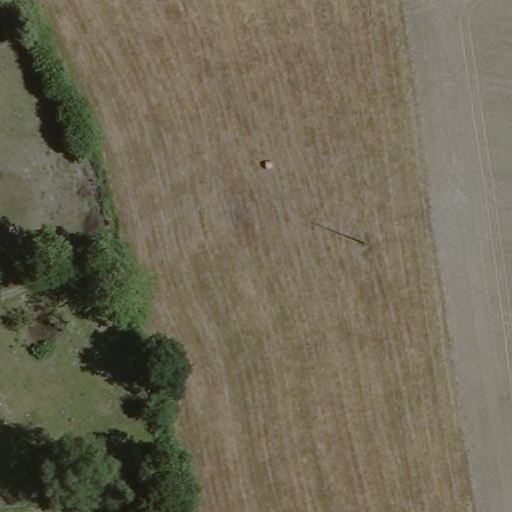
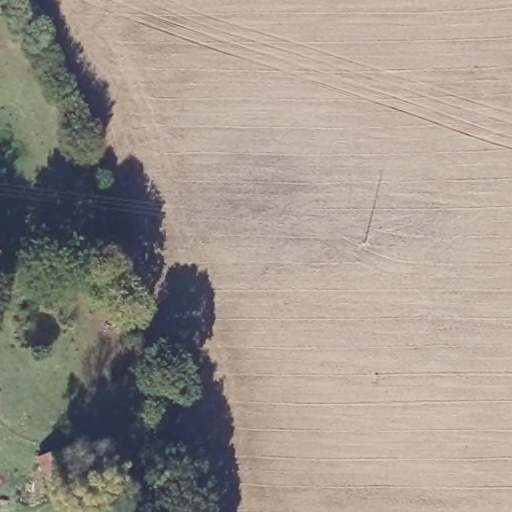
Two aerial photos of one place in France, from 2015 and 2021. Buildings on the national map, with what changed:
unchanged [(85,484),(73,487),(51,493),(41,463),(63,455),(68,469),(79,466),(85,484)]

